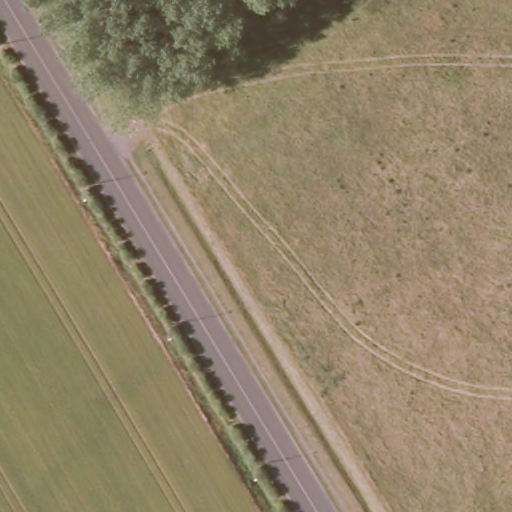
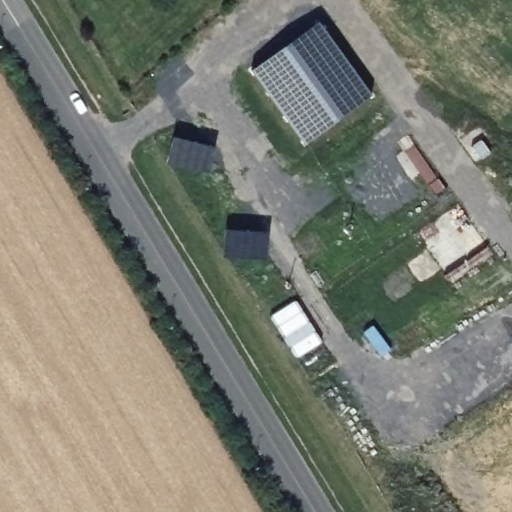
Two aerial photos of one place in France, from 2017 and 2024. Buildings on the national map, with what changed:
new [(305,143),(250,68),(319,21),(372,95),(305,143)]

